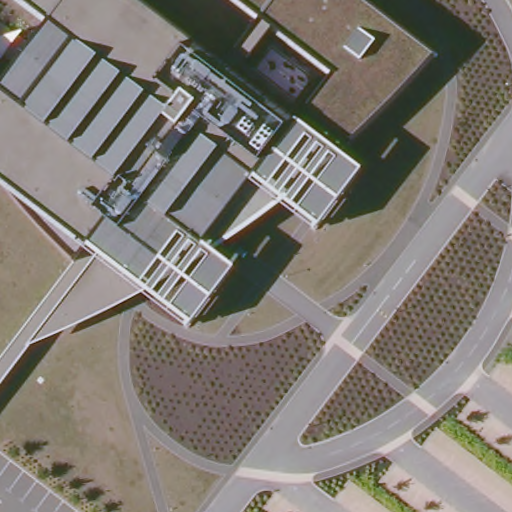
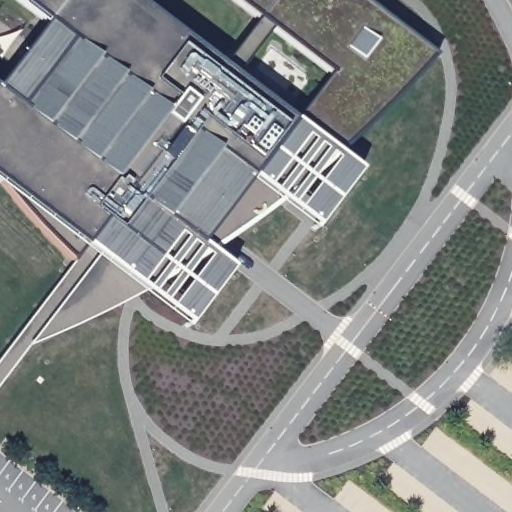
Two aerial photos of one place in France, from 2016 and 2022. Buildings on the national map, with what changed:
unchanged [(15,0),(141,0),(219,59),(256,15),(237,0),(364,0),(434,56),(338,150),(360,167),(314,229),(274,200),(204,246),(231,266),(186,327),(138,291),(88,318),(26,345),(0,380),(0,355),(73,260),(59,248),(10,192),(0,184),(0,78),(44,22),(15,0)]

